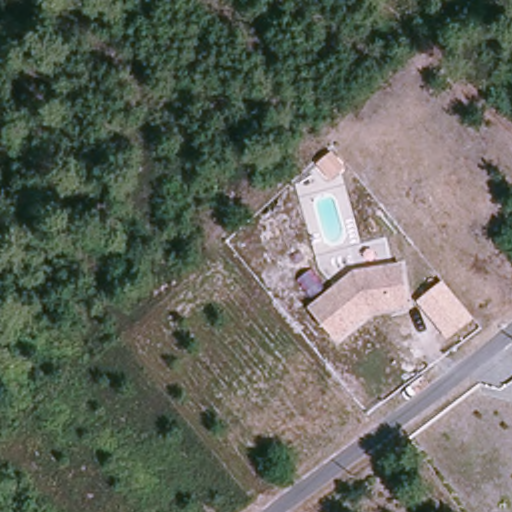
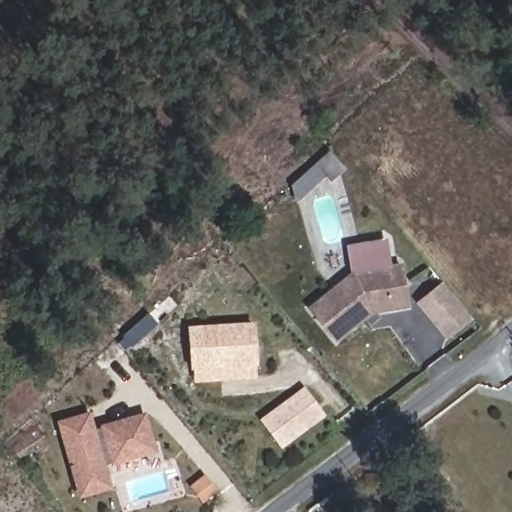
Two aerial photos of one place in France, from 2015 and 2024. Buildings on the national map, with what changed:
new [(318,165),(331,155),(343,171),(332,181),(325,173),(313,185),(300,198),(295,186),(306,176),(318,165)]
unchanged [(411,306),(373,313),(338,342),(310,305),(355,266),(405,260),(411,306)]
unchanged [(447,339),(418,302),(445,280),(475,319),(447,339)]
new [(192,369),(189,326),(256,321),(258,365),(192,369)]
new [(282,449),(260,418),(305,386),(326,415),(282,449)]
new [(111,466),(111,462),(107,463),(113,489),(79,497),(57,421),(92,411),(96,429),(101,428),(100,424),(147,411),(159,452),(111,466)]

